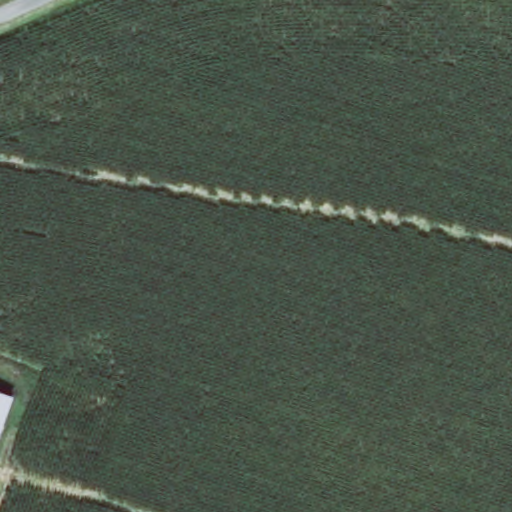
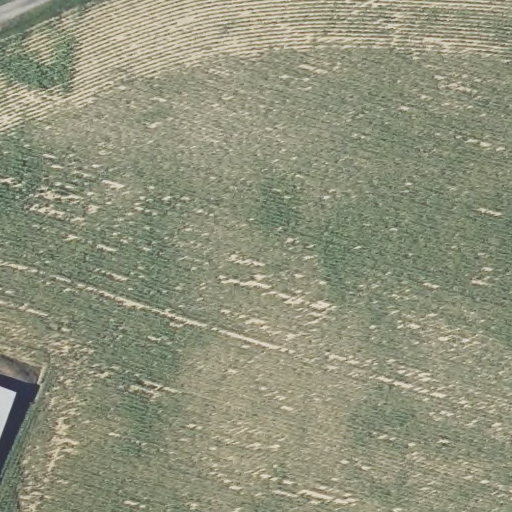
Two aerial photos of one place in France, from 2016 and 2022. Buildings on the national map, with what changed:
unchanged [(0,454),(0,389),(19,395),(0,454)]

